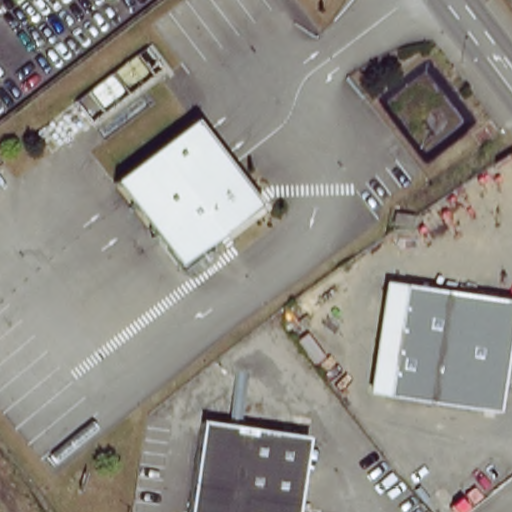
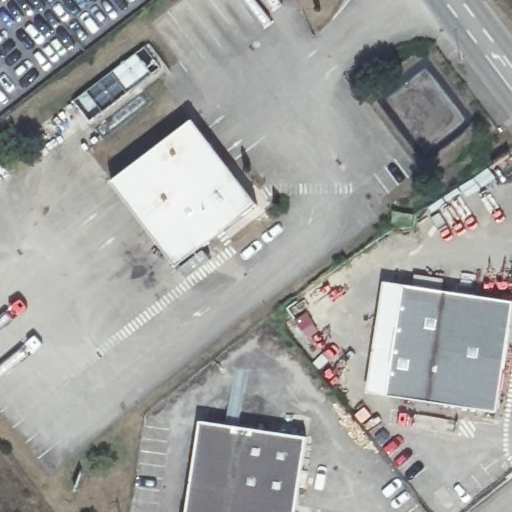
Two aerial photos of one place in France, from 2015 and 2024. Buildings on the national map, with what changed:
unchanged [(112,180),(195,119),(229,166),(147,228),(112,180)]
unchanged [(257,205),(174,268),(147,228),(229,166),(257,205)]
unchanged [(392,279),(504,294),(489,407),(377,391),(392,279)]
unchanged [(200,418),(308,430),(296,512),(187,512),(200,418)]

